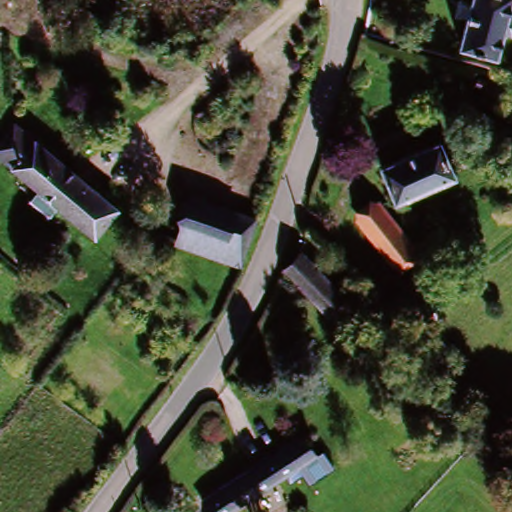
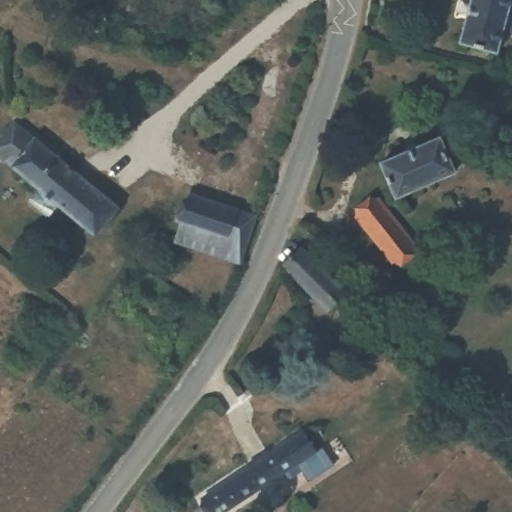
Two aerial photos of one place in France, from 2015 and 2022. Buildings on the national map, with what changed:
unchanged [(455,48),(470,0),(511,0),(493,60),(455,48)]
unchanged [(40,187),(14,165),(0,153),(0,144),(17,125),(35,140),(116,209),(95,235),(63,207),(56,216),(32,196),(40,187)]
unchanged [(472,167),(390,204),(375,171),(457,133),(472,167)]
unchanged [(183,241),(188,226),(199,197),(223,206),(241,212),(256,218),(246,245),(240,262),(183,241)]
unchanged [(421,254),(400,271),(357,219),(376,202),(421,254)]
unchanged [(286,265),(300,247),(345,291),(355,301),(338,318),(328,308),(286,265)]
unchanged [(300,436),(312,456),(224,512),(208,512),(200,499),(300,436)]

